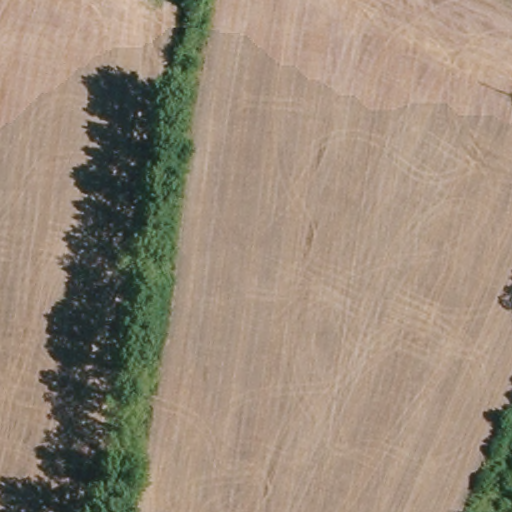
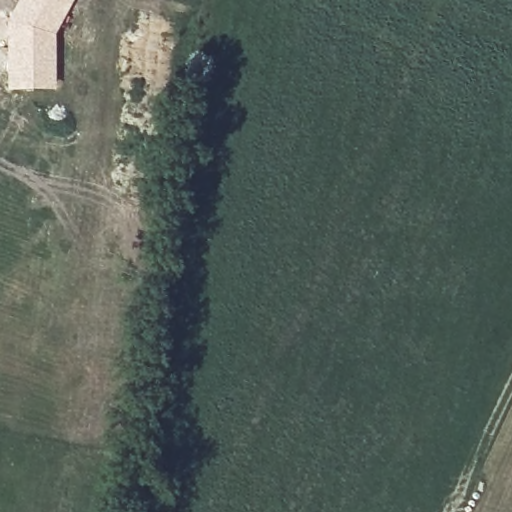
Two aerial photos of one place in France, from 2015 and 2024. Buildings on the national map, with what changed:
new [(11,11),(17,0),(74,0),(55,35),(56,91),(6,91),(5,55),(7,21),(11,11)]

